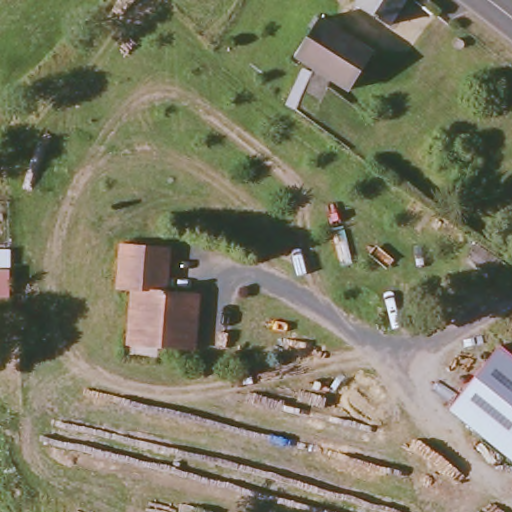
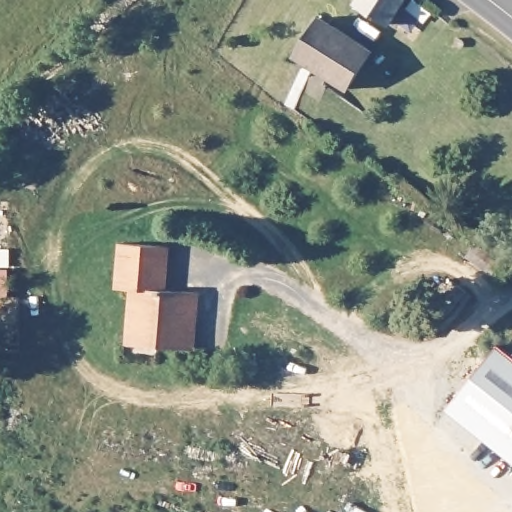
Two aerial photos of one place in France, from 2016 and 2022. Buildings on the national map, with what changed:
unchanged [(363,0),(405,0),(392,20),(363,0)]
unchanged [(365,50),(339,90),(287,55),(313,16),(365,50)]
unchanged [(132,332),(134,284),(116,282),(120,239),(165,242),(163,286),(195,290),(194,317),(193,345),(184,345),(160,342),(131,340),(132,332)]
unchanged [(494,262),(485,274),(460,254),(470,243),(494,262)]
unchanged [(512,354),(512,454),(449,402),(497,342),(512,354)]

